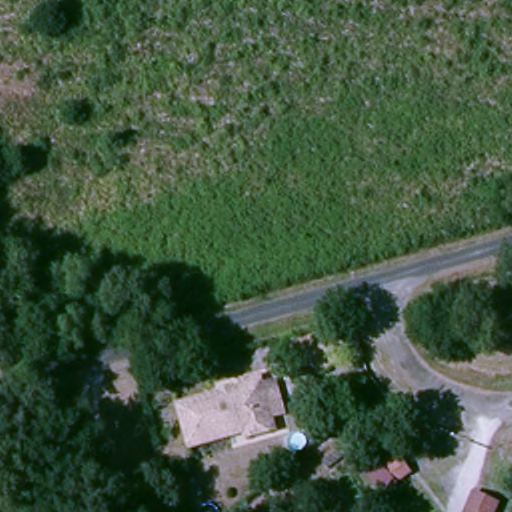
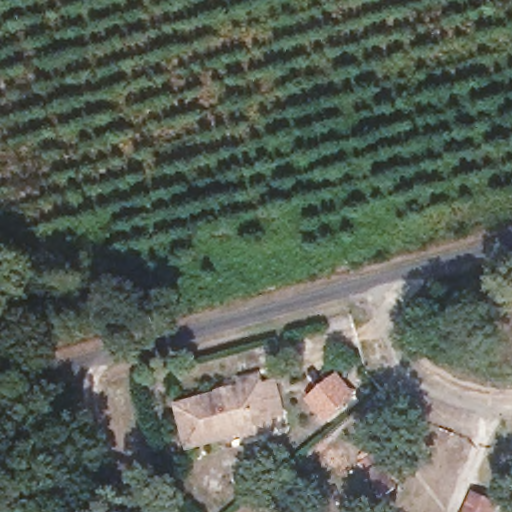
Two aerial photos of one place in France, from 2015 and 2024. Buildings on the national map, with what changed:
new [(307,399),(339,373),(359,396),(327,423),(307,399)]
unchanged [(245,440),(244,433),(190,448),(179,403),(244,386),(242,378),(260,374),(262,380),(274,377),(283,410),(270,413),(275,431),(245,440)]
unchanged [(407,464),(393,476),(382,466),(395,452),(407,464)]
unchanged [(473,497),(498,509),(496,512),(466,512),(473,497)]

